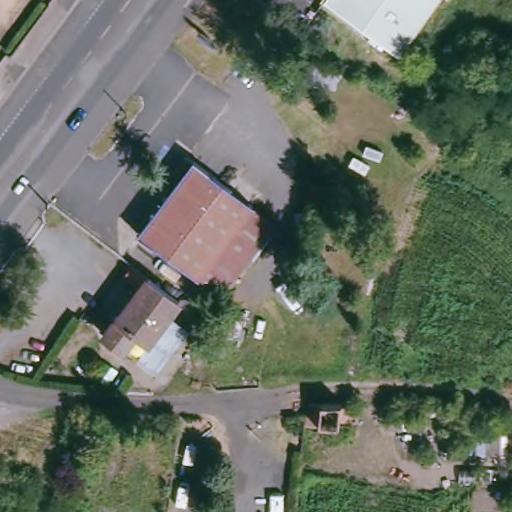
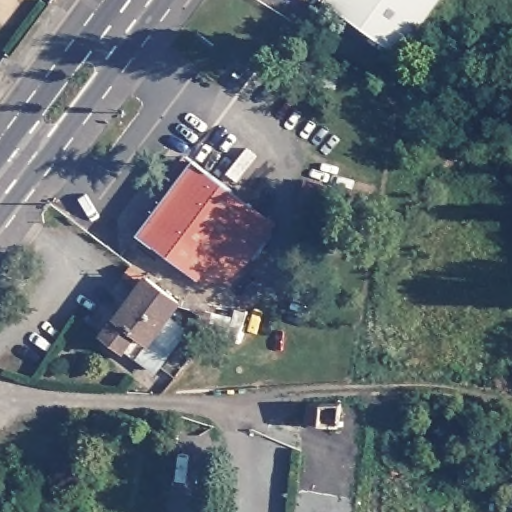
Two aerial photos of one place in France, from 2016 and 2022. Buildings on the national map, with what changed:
unchanged [(334,0),(437,0),(396,51),(334,0)]
unchanged [(270,221),(216,297),(155,254),(198,192),(191,187),(201,172),(270,221)]
unchanged [(180,305),(152,342),(138,361),(137,362),(102,339),(116,320),(117,321),(138,292),(123,281),(130,270),(180,305)]
unchanged [(230,316),(222,358),(196,352),(201,326),(205,311),(230,316)]
unchanged [(340,404),(360,407),(358,423),(338,421),(337,428),(302,425),(305,401),(340,401),(340,404)]
unchanged [(512,454),(501,454),(503,428),(512,429),(512,454)]

